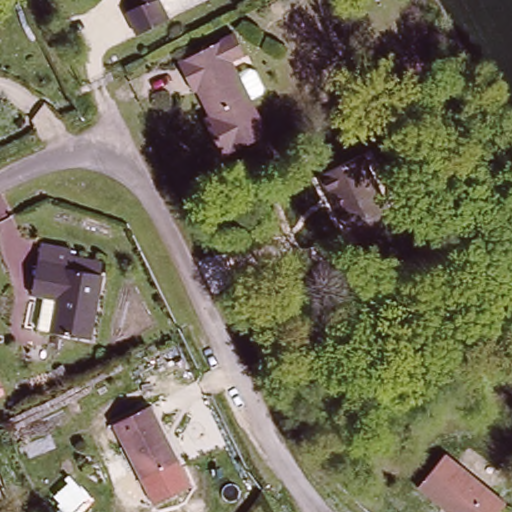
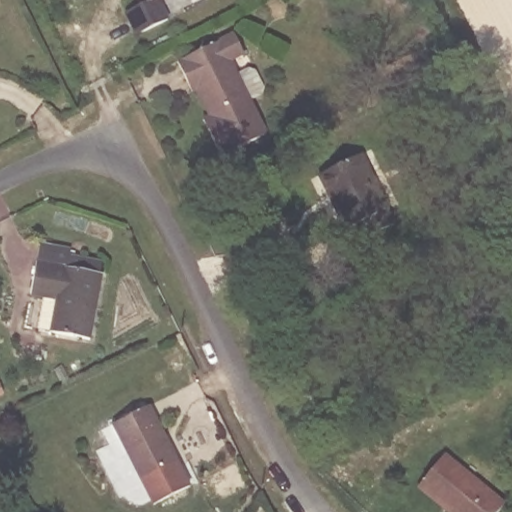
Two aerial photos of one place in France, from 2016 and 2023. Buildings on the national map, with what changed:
unchanged [(135,36),(125,14),(140,6),(137,0),(158,0),(167,21),(135,36)]
unchanged [(233,37),(242,56),(229,63),(265,136),(220,158),(202,121),(210,117),(196,90),(192,92),(187,84),(177,65),(233,37)]
unchanged [(382,207),(389,221),(355,238),(347,224),(341,227),(314,172),(355,151),(382,207)]
unchanged [(42,254),(44,242),(68,247),(66,259),(102,265),(99,276),(101,277),(89,341),(52,334),(35,331),(37,319),(40,320),(44,299),(30,297),(32,289),(37,265),(40,265),(42,254)]
unchanged [(142,481),(114,425),(144,410),(149,408),(157,423),(177,463),(142,481)]
unchanged [(409,487),(435,455),(502,507),(497,512),(438,512),(409,487)]
unchanged [(67,510),(60,498),(72,492),(78,504),(67,510)]

